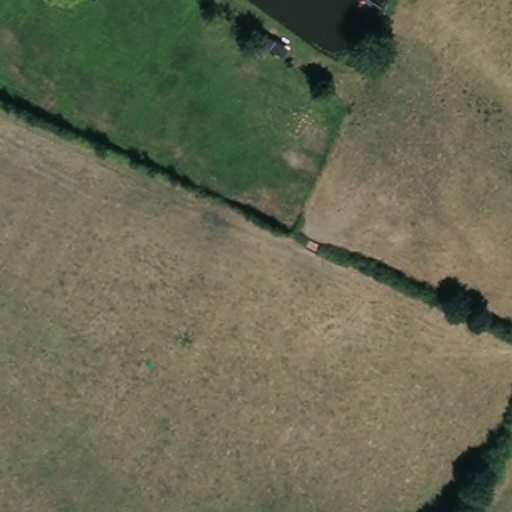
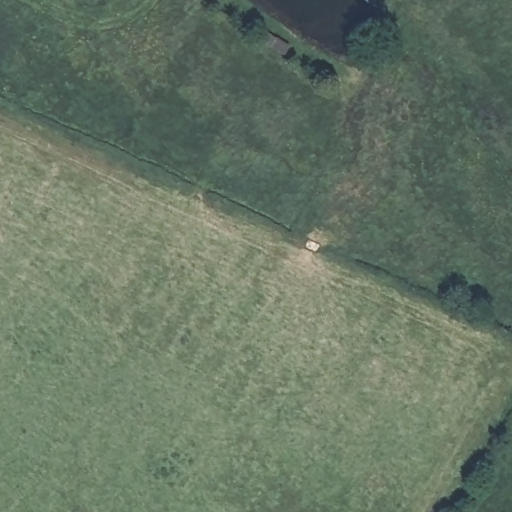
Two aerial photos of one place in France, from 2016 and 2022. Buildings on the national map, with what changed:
[]

